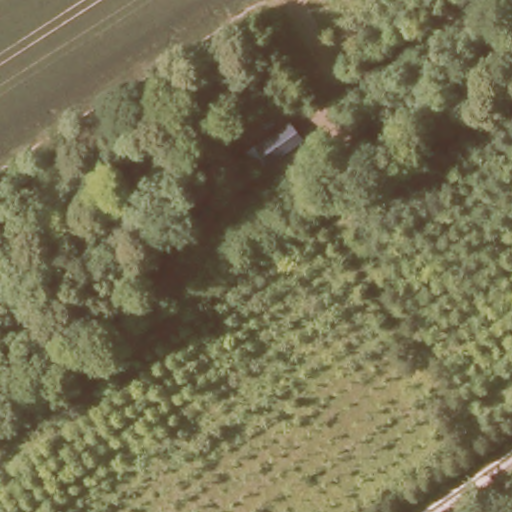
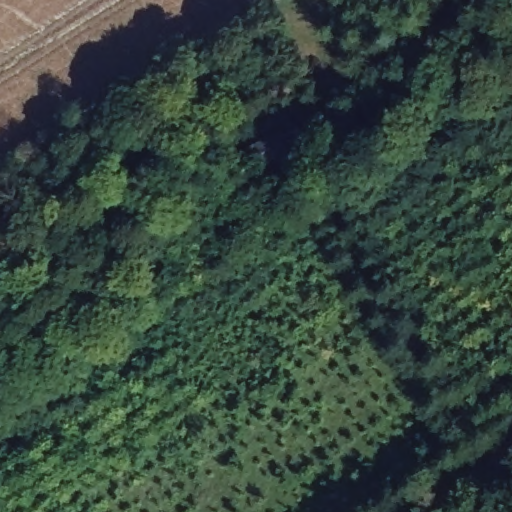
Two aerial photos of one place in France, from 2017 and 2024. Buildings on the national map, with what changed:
unchanged [(286,124),(299,143),(265,166),(252,147),(286,124)]

